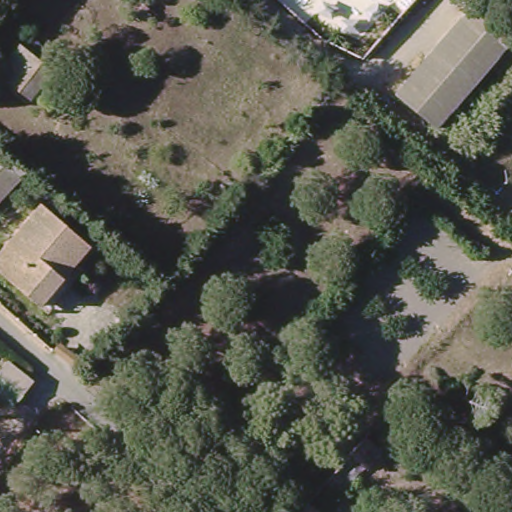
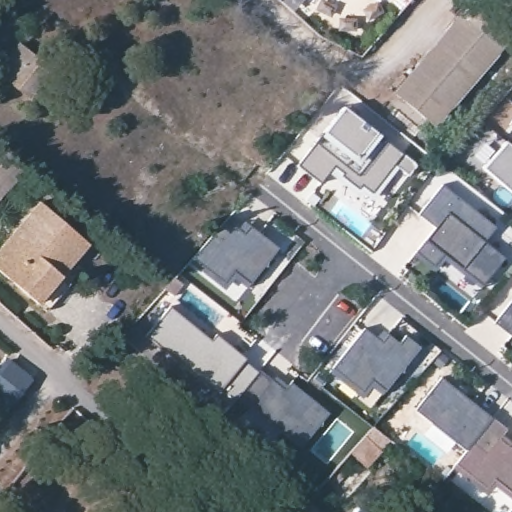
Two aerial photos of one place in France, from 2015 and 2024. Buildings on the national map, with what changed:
unchanged [(139,20),(128,12),(138,0),(148,8),(139,20)]
unchanged [(434,132),(394,98),(471,9),(510,43),(434,132)]
unchanged [(24,100),(0,80),(0,60),(13,43),(48,70),(24,100)]
new [(409,176),(397,167),(371,201),(362,194),(359,197),(329,174),(320,185),(298,167),(321,137),(344,108),(381,137),(417,166),(409,176)]
new [(512,147),(512,148),(512,194),(482,169),(505,142),(512,147)]
unchanged [(0,148),(25,171),(0,197),(0,148)]
new [(434,229),(418,216),(441,187),(494,229),(482,243),(502,258),(481,286),(442,256),(433,267),(414,252),(434,229)]
unchanged [(0,277),(0,243),(34,202),(83,245),(56,277),(65,284),(41,312),(33,305),(0,277)]
new [(247,290),(234,279),(224,292),(191,263),(227,221),(238,231),(244,223),(279,251),(247,290)]
new [(512,295),(512,330),(508,336),(491,322),(512,295)]
new [(383,395),(373,386),(364,395),(333,371),(365,331),(376,340),(383,332),(400,345),(406,336),(421,348),(383,395)]
unchanged [(6,408),(0,404),(0,363),(3,359),(31,381),(6,408)]
new [(299,448),(238,399),(261,371),(286,391),(291,383),(328,415),(299,448)]
new [(494,488),(488,497),(454,468),(494,419),(507,429),(501,436),(512,444),(512,501),(494,488)]
unchanged [(366,468),(350,453),(365,437),(381,452),(366,468)]
unchanged [(315,512),(293,512),(301,501),(315,512)]

